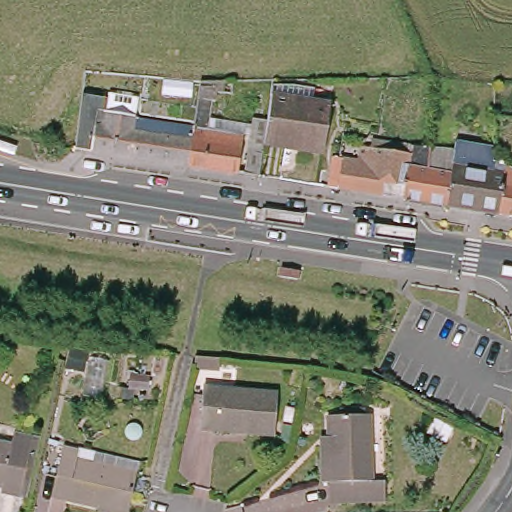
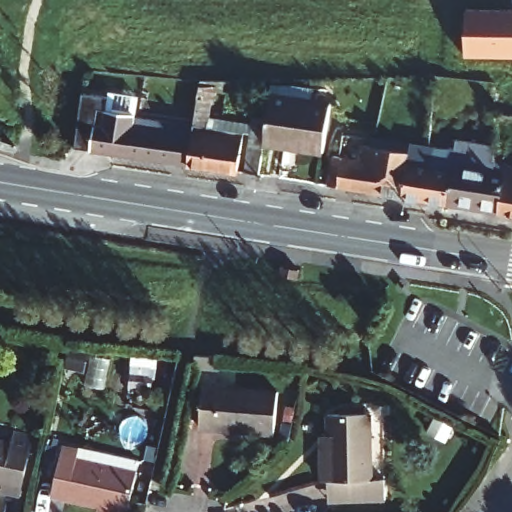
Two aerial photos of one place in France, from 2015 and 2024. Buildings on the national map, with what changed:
new [(465,7),(512,8),(512,55),(466,55),(465,7)]
unchanged [(252,125),(253,118),(267,120),(265,139),(259,176),(246,175),(251,135),(244,134),(244,135),(239,174),(189,166),(191,151),(194,125),(199,95),(200,82),(233,81),(232,94),(216,91),(215,100),(211,100),(208,122),(209,122),(210,118),(252,125)]
unchanged [(312,101),(331,104),(324,152),(303,150),(304,145),(265,139),(267,120),(273,85),(293,85),(314,88),(312,101)]
unchanged [(151,119),(151,120),(194,125),(191,151),(189,166),(162,161),(120,155),(78,149),(75,149),(75,148),(79,123),(94,125),(94,124),(97,104),(106,105),(107,97),(136,102),(135,115),(135,116),(137,116),(151,119)]
unchanged [(1,148),(0,148),(0,138),(3,139),(1,148)]
unchanged [(429,147),(427,169),(451,174),(447,205),(337,188),(328,186),(334,155),(340,156),(341,157),(342,157),(357,160),(360,147),(371,149),(372,138),(429,147)]
unchanged [(455,141),(485,146),(492,148),(492,158),(500,162),(512,168),(512,216),(447,205),(451,174),(451,172),(455,141)]
unchanged [(299,270),(298,279),(280,276),(282,267),(299,270)]
unchanged [(69,348),(85,351),(81,371),(65,367),(69,348)]
unchanged [(220,357),(220,358),(220,368),(194,366),(195,356),(220,357)]
unchanged [(287,371),(295,367),(300,376),(292,380),(287,371)]
unchanged [(278,392),(275,435),(200,428),(203,386),(278,392)]
unchanged [(328,482),(322,482),(321,451),(321,435),(328,435),(327,415),(370,413),(372,480),(385,480),(386,502),(335,504),(329,504),(328,482)]
unchanged [(27,496),(22,495),(1,491),(2,486),(0,486),(0,441),(11,443),(14,431),(34,435),(40,436),(27,496)]
unchanged [(98,506),(51,496),(62,447),(79,450),(80,447),(140,461),(137,470),(138,470),(128,512),(97,512),(98,506)]

